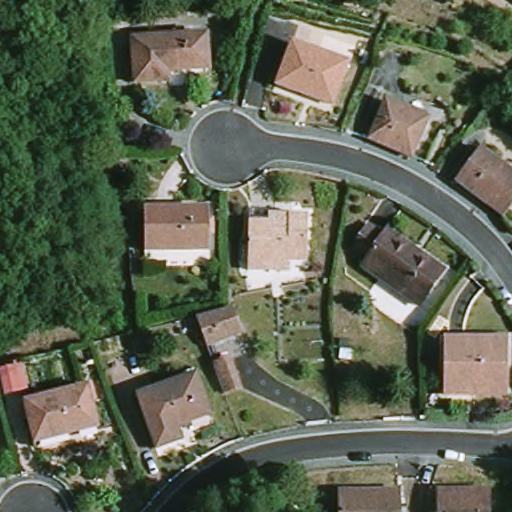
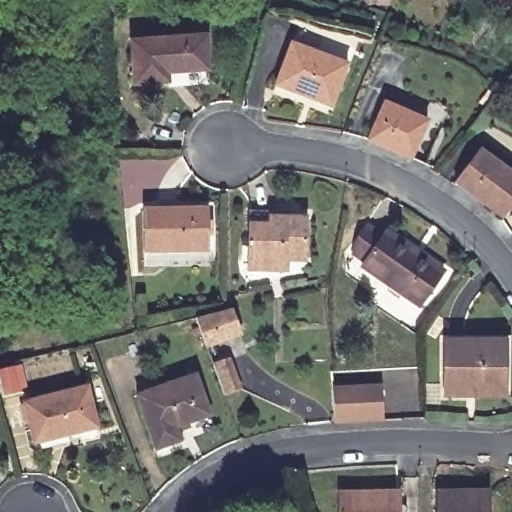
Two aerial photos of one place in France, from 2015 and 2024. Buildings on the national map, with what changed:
unchanged [(131,43),(206,37),(209,70),(169,73),(169,82),(135,85),(131,43)]
unchanged [(292,45),(347,66),(332,107),(276,86),(292,45)]
unchanged [(384,104),(428,123),(412,160),(368,141),(384,104)]
unchanged [(489,207),(455,182),(481,150),(512,172),(512,207),(507,214),(503,218),(489,207)]
unchanged [(207,209),(209,250),(145,251),(144,210),(207,209)]
unchanged [(273,270),(250,269),(251,224),(251,215),(276,216),(308,217),(307,261),(290,260),(289,271),(273,270)]
unchanged [(445,271),(421,307),(363,266),(366,262),(353,254),(355,245),(368,226),(383,237),(387,232),(445,271)]
unchanged [(229,308),(231,308),(240,333),(206,346),(196,317),(229,308)]
unchanged [(467,396),(445,396),(446,341),(505,342),(505,390),(505,397),(467,396)]
unchanged [(240,387),(224,392),(217,376),(213,365),(229,358),(240,387)]
unchanged [(18,391),(5,393),(0,372),(0,369),(13,367),(18,391)]
unchanged [(131,396),(188,370),(211,416),(178,430),(182,437),(156,450),(131,396)]
new [(383,422),(334,424),(332,386),(382,384),(383,422)]
unchanged [(24,402),(87,386),(98,427),(35,443),(24,402)]
unchanged [(438,491),(488,491),(488,512),(438,512),(438,491)]
unchanged [(340,497),(340,493),(372,492),(398,492),(398,512),(340,512),(340,497)]

